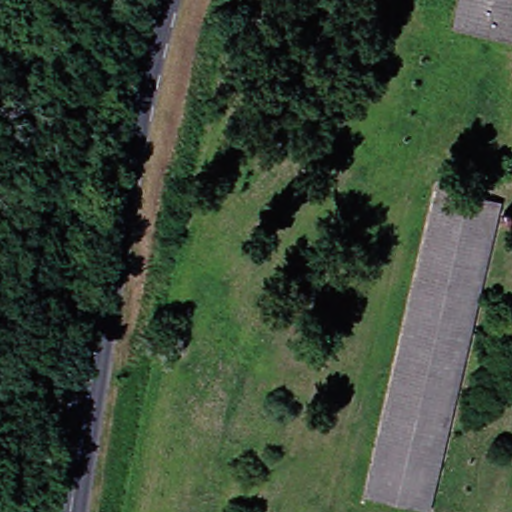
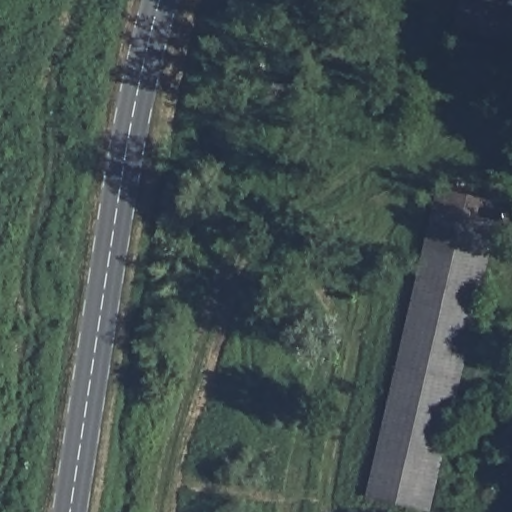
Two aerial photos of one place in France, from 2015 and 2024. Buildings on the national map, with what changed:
unchanged [(470,0),(512,0),(512,39),(463,29),(470,0)]
unchanged [(436,508),(376,495),(448,189),(508,202),(436,508)]

